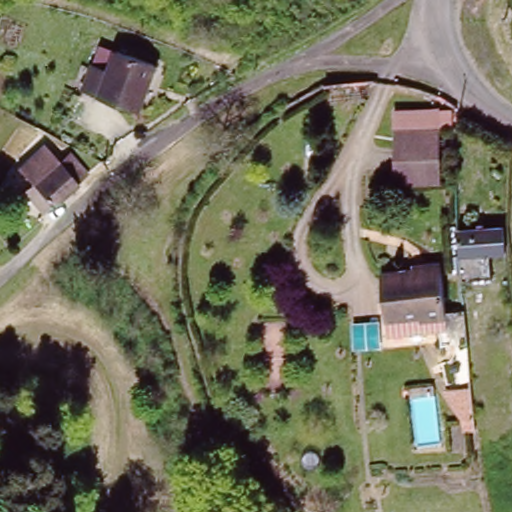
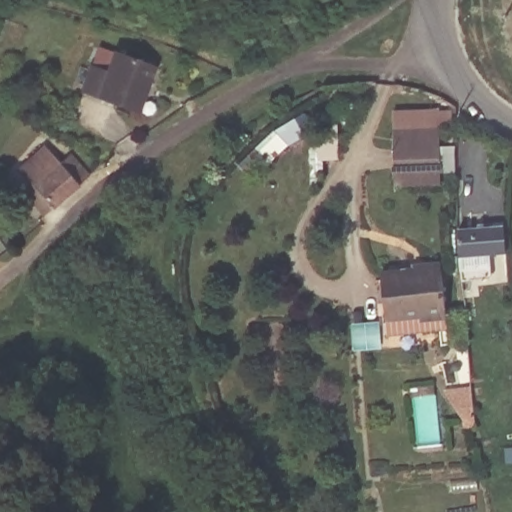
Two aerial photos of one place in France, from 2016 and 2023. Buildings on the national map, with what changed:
unchanged [(108,74),(116,55),(158,72),(139,114),(83,90),(93,68),(108,74)]
unchanged [(451,107),(452,126),(436,127),(439,183),(397,185),(393,109),(451,107)]
unchanged [(21,196),(28,190),(36,183),(25,169),(51,145),(65,159),(74,151),(94,173),(48,212),(38,201),(31,207),(21,196)]
unchanged [(494,247),(497,267),(467,272),(458,227),(504,220),(509,244),(507,244),(494,247)]
unchanged [(417,260),(417,256),(442,255),(447,307),(448,318),(389,322),(389,305),(386,262),(417,260)]

